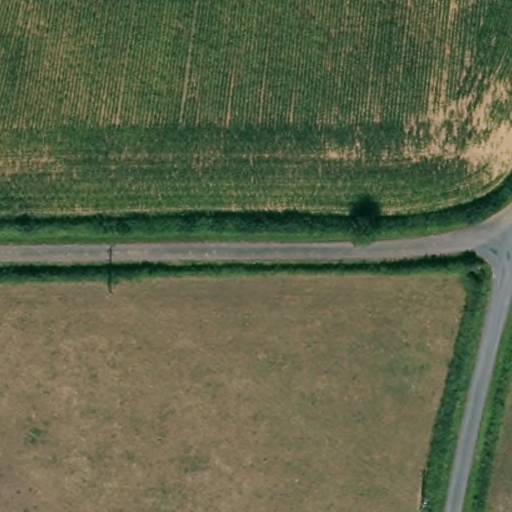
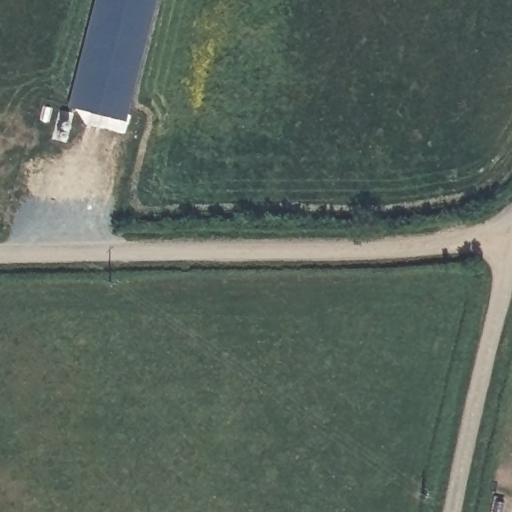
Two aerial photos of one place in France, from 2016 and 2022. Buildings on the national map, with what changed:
new [(68,107),(95,0),(157,0),(126,121),(68,107)]

